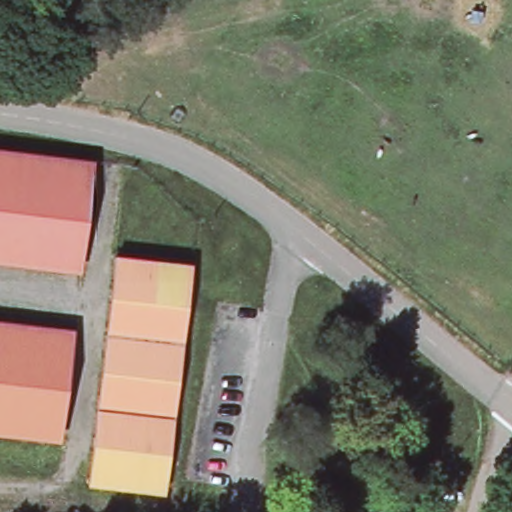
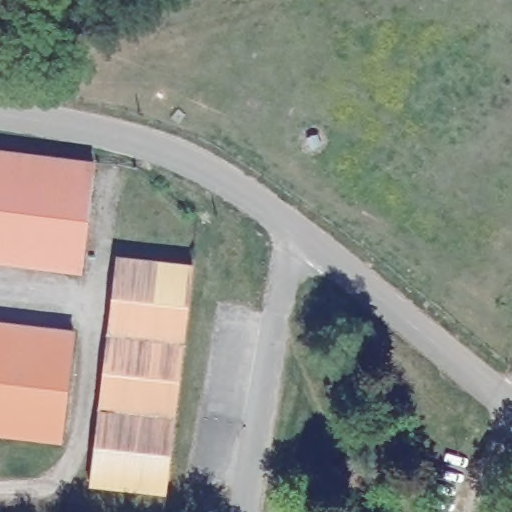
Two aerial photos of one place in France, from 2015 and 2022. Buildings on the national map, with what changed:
unchanged [(99,153),(85,275),(0,267),(0,144),(99,153)]
unchanged [(166,492),(88,482),(116,254),(193,260),(166,492)]
unchanged [(74,328),(60,444),(0,437),(0,319),(74,328)]

